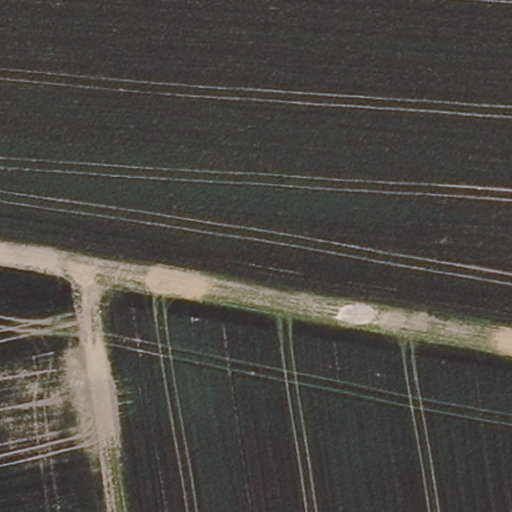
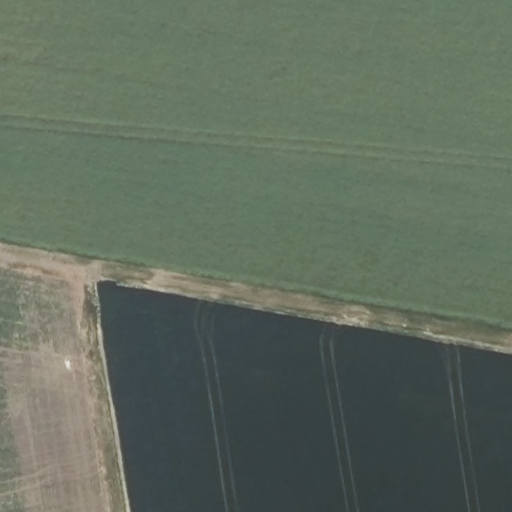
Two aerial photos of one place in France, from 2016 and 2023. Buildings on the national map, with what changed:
[]

